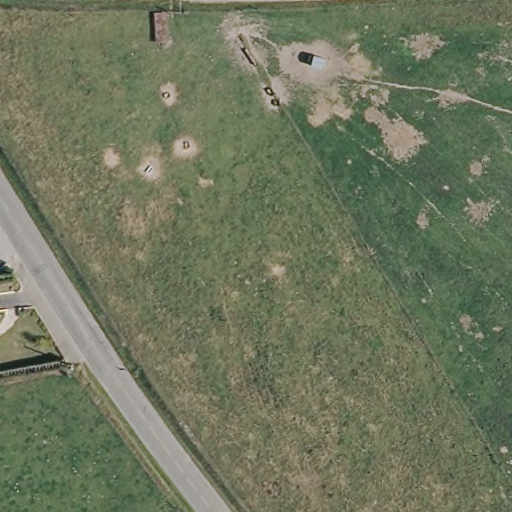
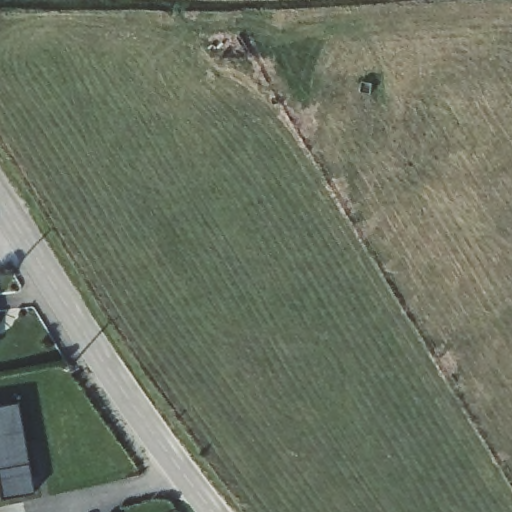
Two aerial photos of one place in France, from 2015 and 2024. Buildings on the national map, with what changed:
new [(35,491),(2,497),(0,482),(0,404),(18,401),(35,491)]

